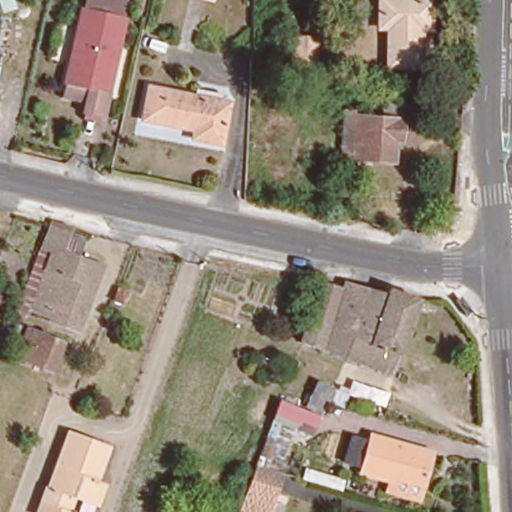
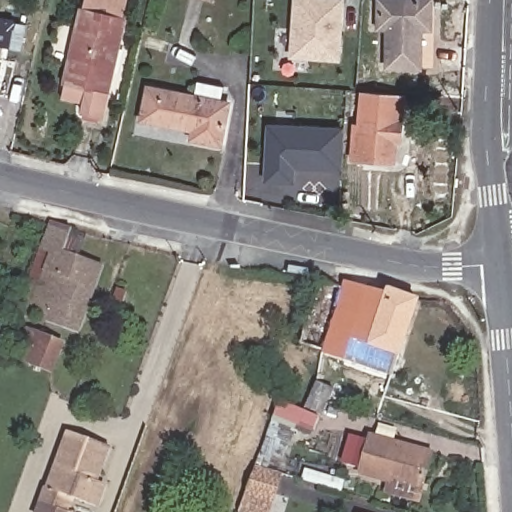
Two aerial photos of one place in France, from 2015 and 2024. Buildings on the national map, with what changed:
unchanged [(65,81),(83,4),(84,0),(128,0),(124,14),(106,90),(101,113),(79,107),(81,99),(62,94),(65,81)]
new [(340,61),(289,58),(293,0),(344,0),(340,61)]
unchanged [(431,30),(421,29),(420,67),(388,66),(389,29),(379,28),(380,1),(431,1),(431,30)]
demolished [(318,39),(316,69),(290,67),(292,36),(318,39)]
unchanged [(225,140),(199,134),(200,126),(148,115),(155,84),(233,101),(225,140)]
unchanged [(346,115),(356,116),(361,95),(405,98),(405,118),(403,142),(398,142),(396,164),(343,160),(346,115)]
new [(338,170),(292,167),(292,182),(264,181),(267,126),(340,130),(338,170)]
unchanged [(79,334),(47,323),(48,320),(29,313),(51,255),(39,250),(50,224),(72,230),(72,231),(71,235),(84,240),(77,259),(101,267),(79,334)]
unchanged [(344,290),(346,283),(385,295),(386,291),(416,300),(416,301),(415,305),(393,375),(301,344),(320,283),(344,290)]
unchanged [(25,327),(61,342),(49,370),(14,357),(25,327)]
unchanged [(319,406),(305,400),(317,378),(330,384),(319,406)]
unchanged [(290,415),(276,410),(280,400),(293,405),(290,415)]
unchanged [(281,450),(263,442),(272,417),(290,424),(281,450)]
unchanged [(93,480),(101,483),(93,505),(72,497),(67,511),(39,501),(44,487),(46,488),(67,431),(105,445),(93,480)]
unchanged [(413,484),(353,467),(364,431),(423,447),(413,484)]
unchanged [(255,512),(241,507),(257,462),(279,470),(267,512),(255,512)]

